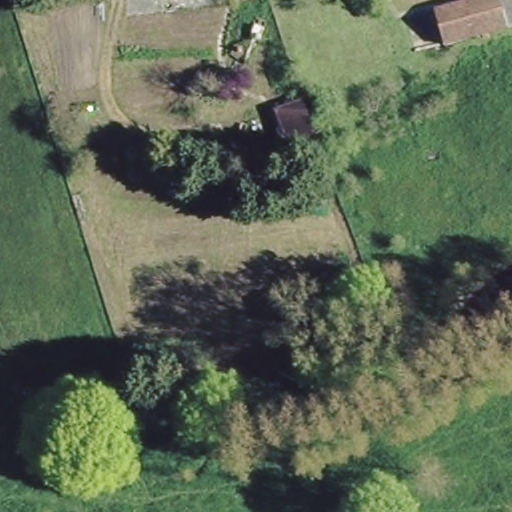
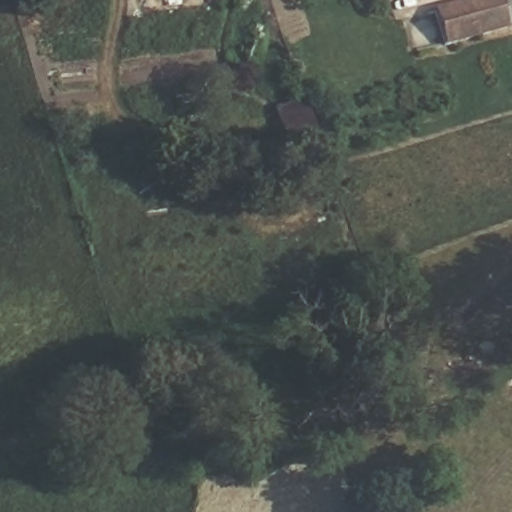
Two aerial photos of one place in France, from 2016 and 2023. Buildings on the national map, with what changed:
unchanged [(419,17),(472,0),(512,0),(512,29),(431,56),(419,17)]
unchanged [(301,102),(320,147),(287,160),(272,113),(301,102)]

